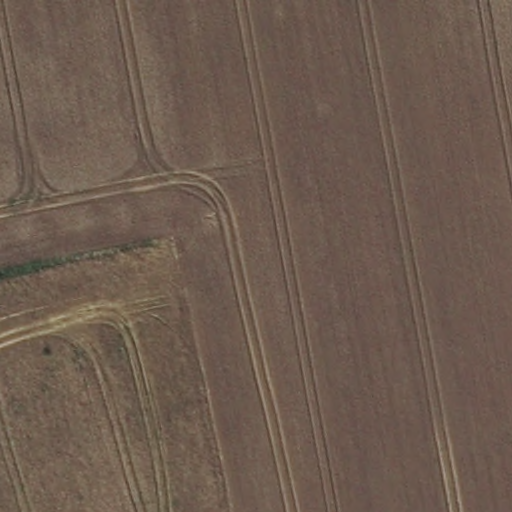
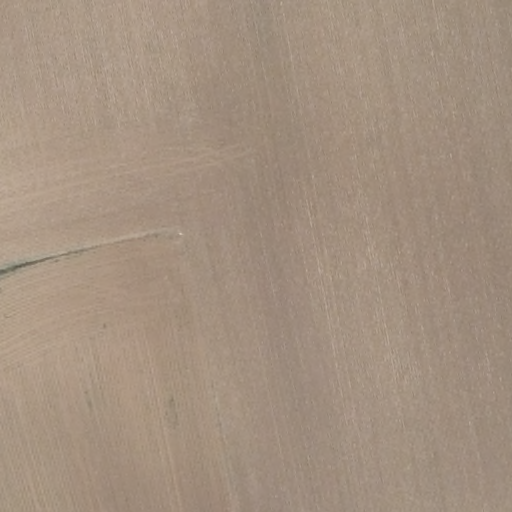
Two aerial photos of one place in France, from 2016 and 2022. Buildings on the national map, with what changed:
[]

